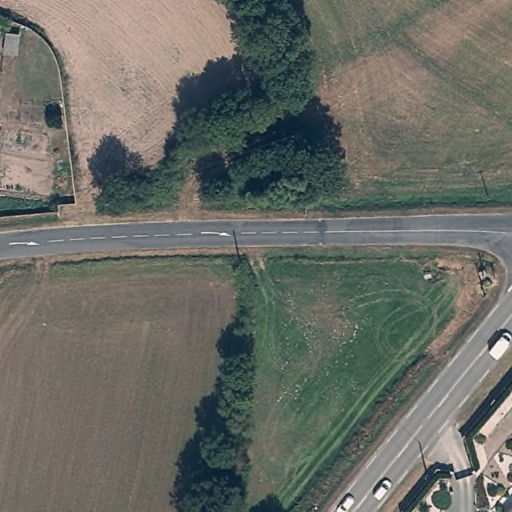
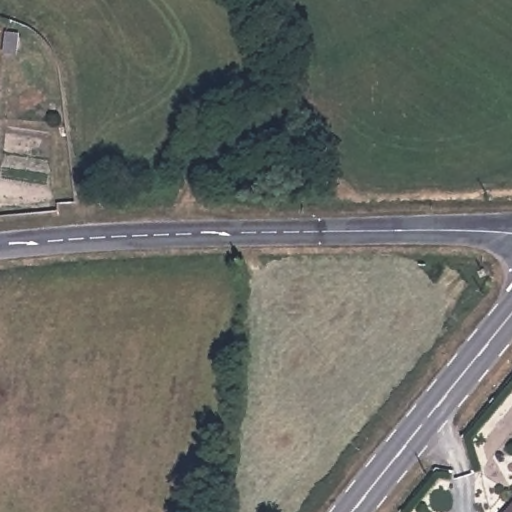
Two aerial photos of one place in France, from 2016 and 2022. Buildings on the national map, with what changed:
unchanged [(15,35),(13,55),(4,54),(6,34),(15,35)]

